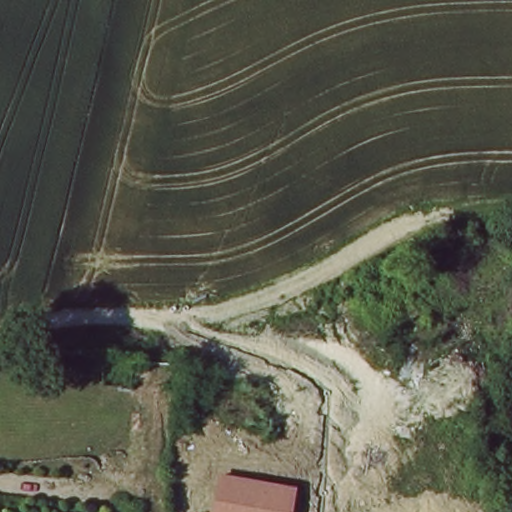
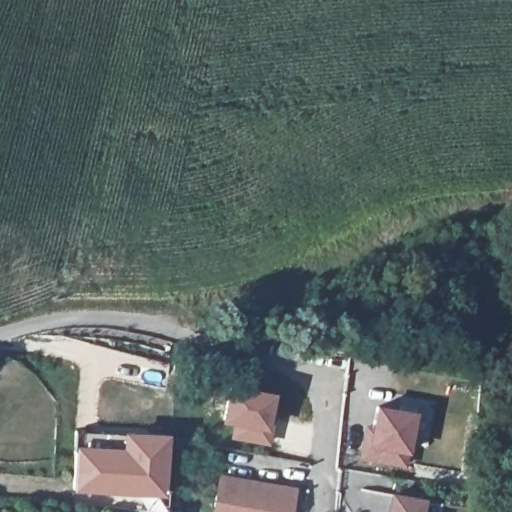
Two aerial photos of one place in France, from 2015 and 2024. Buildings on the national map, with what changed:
new [(272,392),(267,426),(267,443),(230,435),(233,420),(223,419),(230,385),(272,392)]
new [(405,465),(362,458),(366,428),(373,429),(376,407),(413,412),(405,465)]
new [(119,455),(129,443),(130,435),(166,436),(162,492),(75,489),(75,451),(119,455)]
unchanged [(221,474),(297,485),(292,512),(214,512),(221,474)]
new [(426,500),(424,512),(391,512),(394,495),(426,500)]

